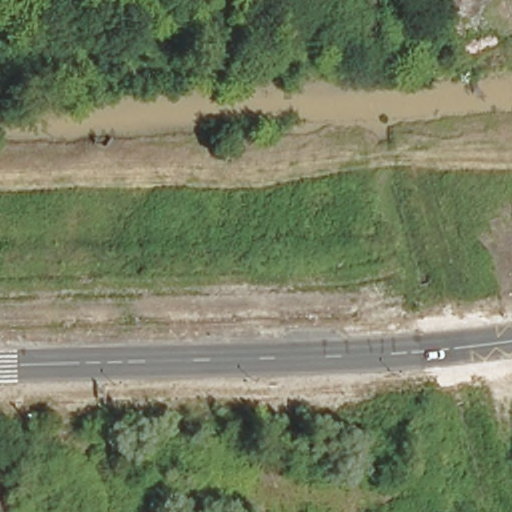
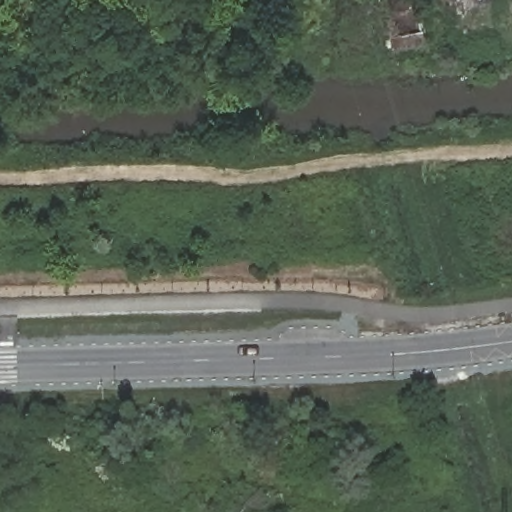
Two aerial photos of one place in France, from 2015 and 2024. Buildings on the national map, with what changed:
unchanged [(385,0),(424,0),(430,32),(431,43),(393,49),(390,34),(385,0)]

